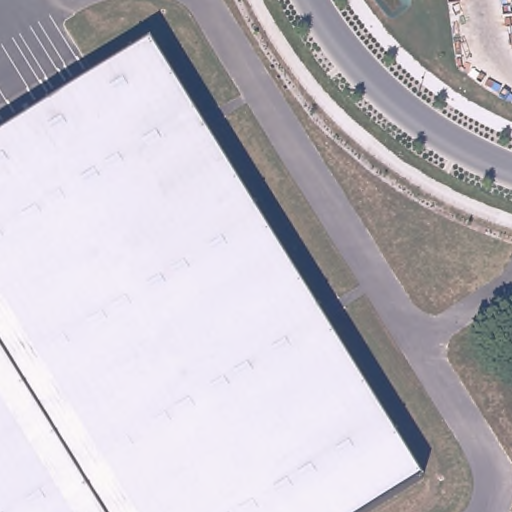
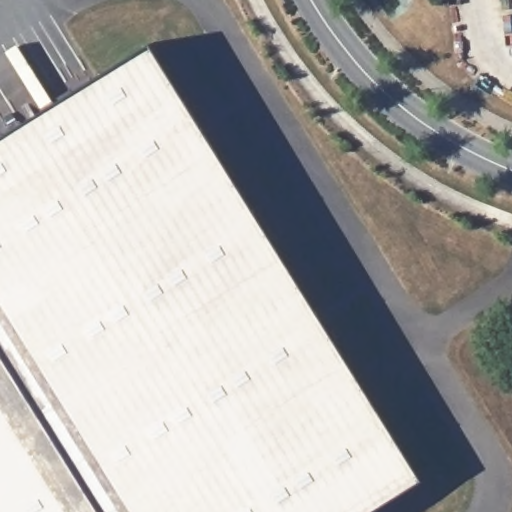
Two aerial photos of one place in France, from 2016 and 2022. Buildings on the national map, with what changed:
unchanged [(150,43),(419,476),(360,512),(0,512),(0,136),(150,43)]

